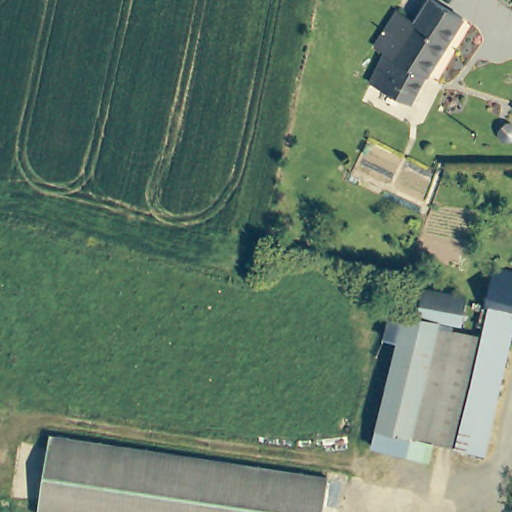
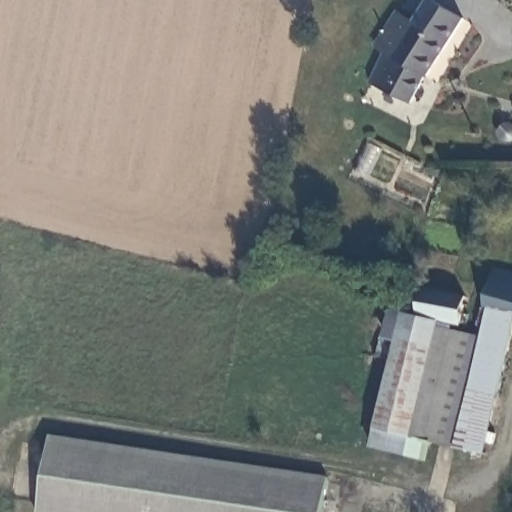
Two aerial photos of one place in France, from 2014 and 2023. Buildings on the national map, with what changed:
unchanged [(429,77),(424,78),(410,104),(374,83),(390,56),(375,47),(399,11),(415,18),(427,0),(435,0),(466,18),(429,77)]
unchanged [(510,121),(511,121),(512,121),(512,141),(511,141),(510,141),(509,141),(507,141),(506,141),(505,140),(504,140),(503,139),(502,138),(501,137),(500,136),(500,135),(500,134),(500,132),(500,131),(500,130),(500,129),(500,127),(500,126),(501,125),(502,124),(503,123),(504,123),(505,122),(506,121),(508,121),(509,121),(510,121)]
unchanged [(486,306),(496,267),(512,270),(512,317),(492,309),(486,306)]
unchanged [(468,295),(465,325),(420,317),(424,288),(468,295)]
unchanged [(506,379),(503,393),(472,385),(483,336),(492,309),(512,317),(512,356),(506,379)]
unchanged [(426,440),(377,428),(401,318),(450,329),(426,440)]
unchanged [(458,447),(426,440),(450,329),(483,336),(472,385),(458,447)]
unchanged [(503,393),(487,454),(485,453),(473,451),(458,447),(472,385),(503,393)]
unchanged [(49,437),(326,476),(322,512),(38,512),(49,437)]

